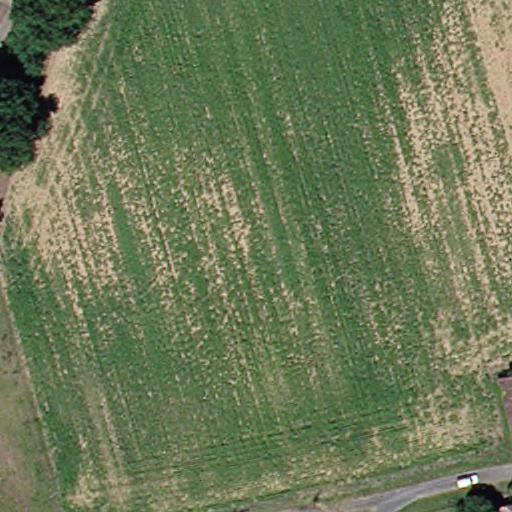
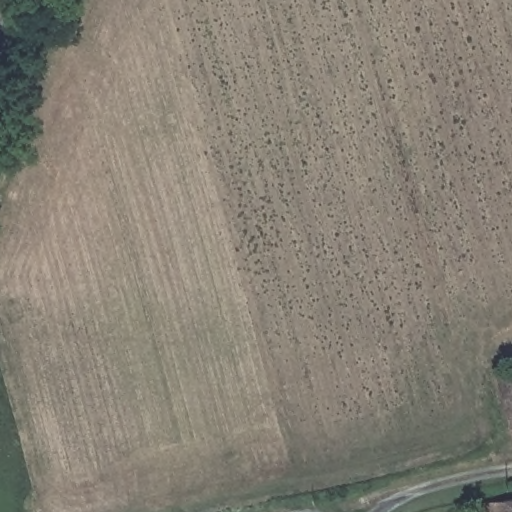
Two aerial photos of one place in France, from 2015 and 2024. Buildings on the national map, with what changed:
unchanged [(507,371),(512,370),(512,396),(507,371)]
unchanged [(500,435),(495,405),(512,403),(512,433),(500,435)]
unchanged [(512,497),(512,512),(496,512),(497,496),(512,497)]

